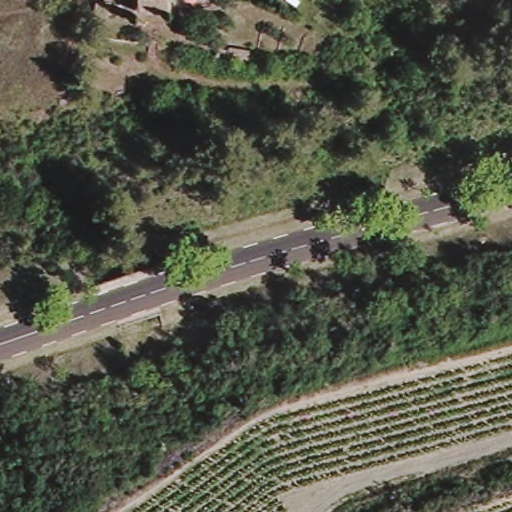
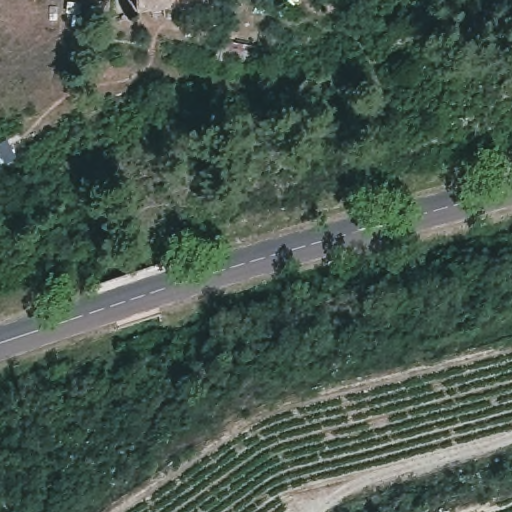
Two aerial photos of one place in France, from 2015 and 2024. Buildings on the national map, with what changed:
unchanged [(132,0),(161,0),(162,10),(133,12),(132,0)]

